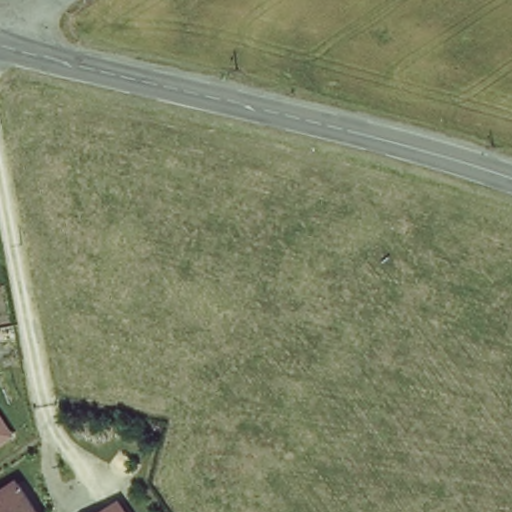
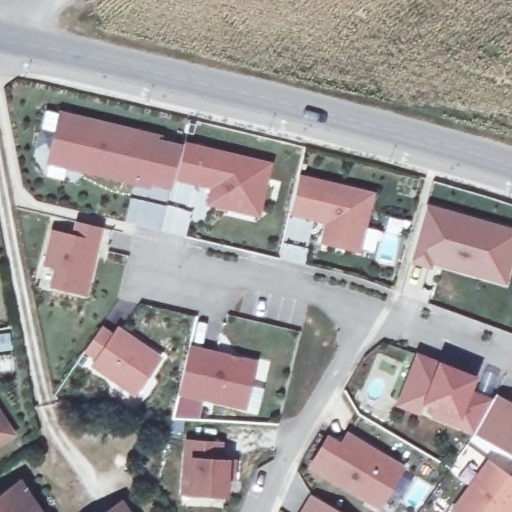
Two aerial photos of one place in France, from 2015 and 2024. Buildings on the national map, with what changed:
new [(163,133),(162,137),(181,142),(173,181),(153,177),(153,181),(48,156),(60,109),(163,133)]
new [(274,162),(261,218),(206,206),(209,188),(177,181),(185,142),(274,162)]
new [(299,177),(371,194),(359,250),(324,242),(328,221),(289,213),(299,177)]
new [(426,204),(512,228),(512,264),(506,284),(433,264),(431,269),(411,263),(426,204)]
new [(99,228),(85,295),(49,287),(54,268),(43,265),(51,231),(73,236),(76,223),(99,228)]
new [(94,361),(83,352),(101,325),(112,334),(118,327),(161,357),(135,396),(90,366),(94,361)]
new [(256,360),(246,404),(179,388),(189,345),(256,360)]
new [(478,370),(473,383),(497,393),(498,391),(512,399),(512,446),(479,426),(478,429),(436,409),(439,401),(428,397),(424,407),(402,399),(420,349),(478,370)]
unchanged [(0,446),(0,412),(15,435),(0,446)]
new [(379,510),(308,467),(327,435),(341,442),(346,432),(405,466),(379,510)]
new [(224,437),(223,455),(236,456),(236,472),(229,472),(228,490),(184,488),(188,435),(224,437)]
new [(508,512),(465,512),(457,505),(492,455),(512,470),(512,506),(508,512)]
unchanged [(0,512),(0,503),(18,488),(34,512),(0,512)]
new [(306,512),(318,493),(349,512),(306,512)]
unchanged [(133,512),(105,512),(123,499),(133,512)]

